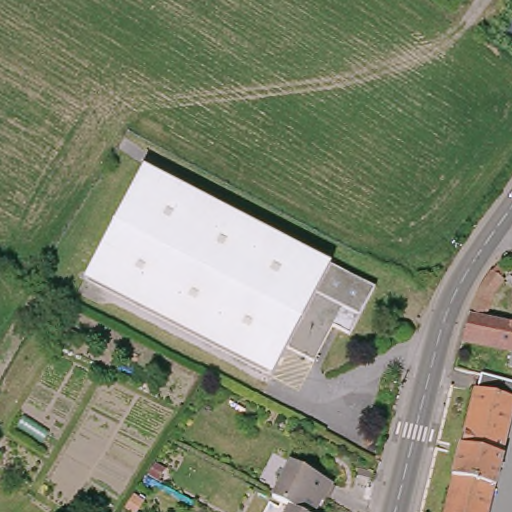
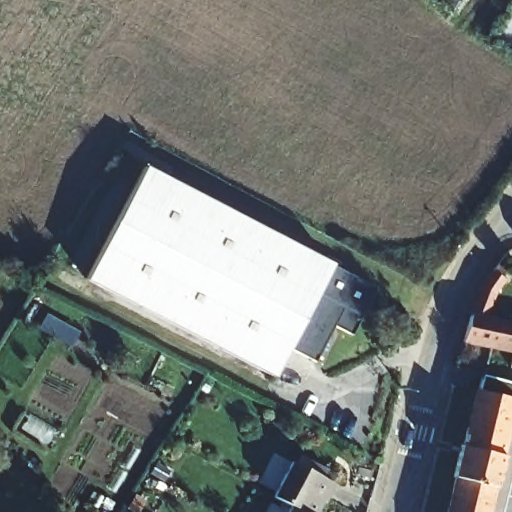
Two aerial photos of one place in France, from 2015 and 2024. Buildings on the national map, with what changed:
unchanged [(370,283),(356,312),(339,304),(312,358),(285,344),(270,374),(79,280),(135,167),(370,283)]
unchanged [(480,280),(493,261),(503,267),(488,289),(480,313),(512,320),(512,347),(462,336),(469,308),(480,280)]
unchanged [(510,393),(471,385),(475,371),(512,382),(512,404),(508,403),(510,393)]
unchanged [(450,473),(445,472),(453,440),(458,441),(471,385),(510,393),(496,450),(500,451),(493,481),(490,480),(482,512),(440,512),(450,473)]
unchanged [(270,492),(288,458),(333,482),(323,498),(318,496),(310,512),(305,512),(288,502),(270,492)]
unchanged [(288,502),(305,512),(283,512),(288,502)]

